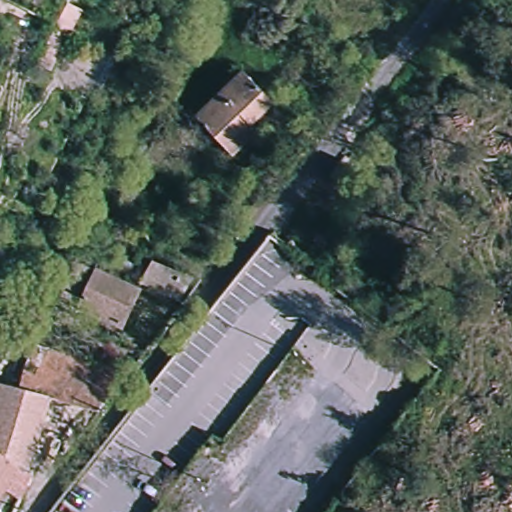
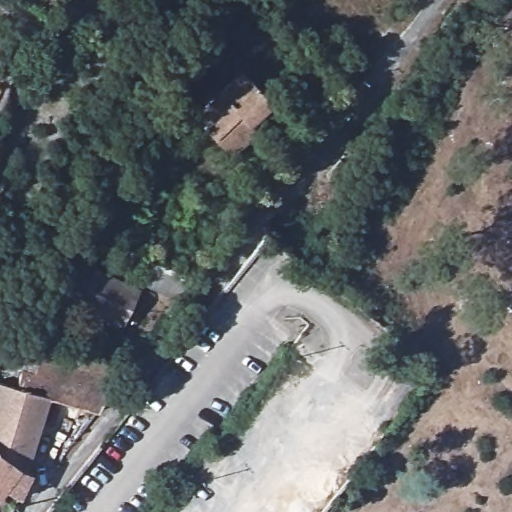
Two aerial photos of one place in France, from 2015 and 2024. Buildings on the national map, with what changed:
unchanged [(59,70),(43,61),(70,8),(86,16),(59,70)]
unchanged [(242,75),(269,105),(248,124),(256,133),(229,157),(194,118),(242,75)]
unchanged [(146,300),(128,338),(66,309),(84,271),(114,285),(129,255),(149,266),(134,295),(143,298),(146,300)]
unchanged [(206,279),(188,306),(146,292),(153,261),(206,279)]
unchanged [(45,394),(20,460),(0,447),(0,383),(10,385),(25,342),(116,371),(89,410),(45,394)]
unchanged [(19,465),(25,469),(13,497),(0,490),(0,447),(20,460),(19,465)]

